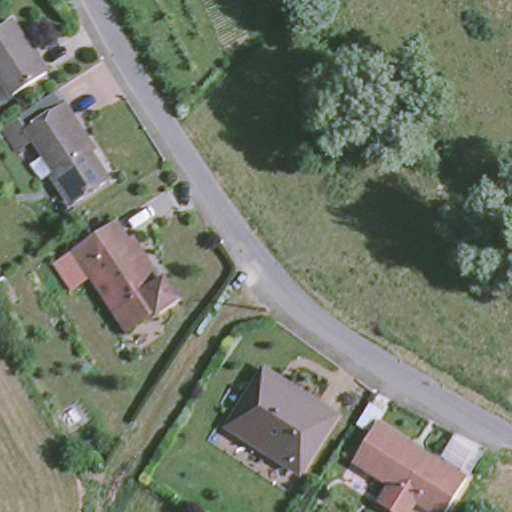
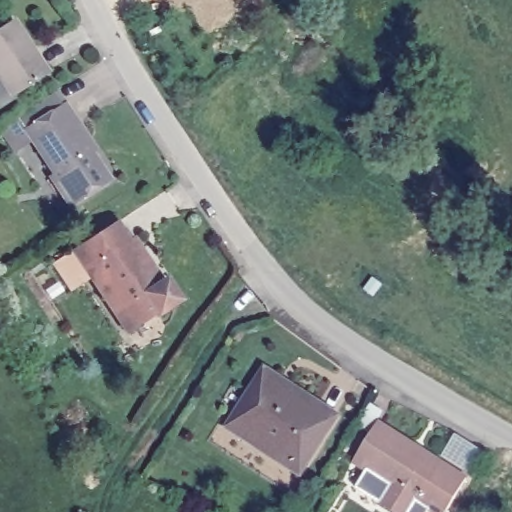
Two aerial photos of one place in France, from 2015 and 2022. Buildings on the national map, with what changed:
unchanged [(41,69),(8,91),(0,78),(0,21),(8,16),(41,69)]
unchanged [(76,121),(71,124),(104,174),(69,197),(28,133),(43,122),(38,114),(61,98),(76,121)]
unchanged [(111,313),(71,250),(111,222),(125,241),(129,239),(157,281),(161,278),(176,300),(154,314),(152,312),(131,327),(123,332),(111,313)]
unchanged [(278,384),(326,415),(289,470),(221,424),(256,370),(269,378),(278,384)]
unchanged [(461,477),(439,512),(430,512),(409,498),(401,512),(392,512),(373,500),(384,482),(349,459),(374,422),(404,441),(434,460),(461,477)]

